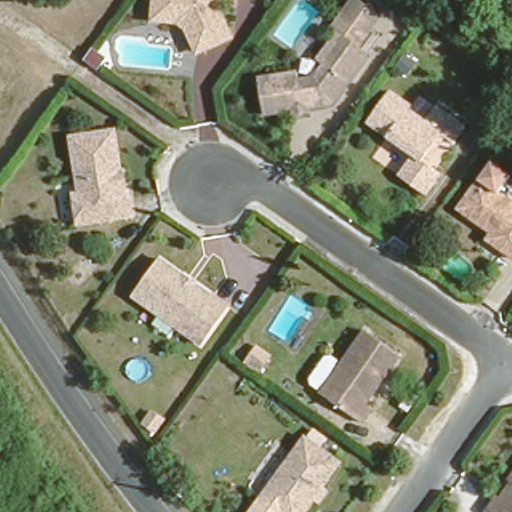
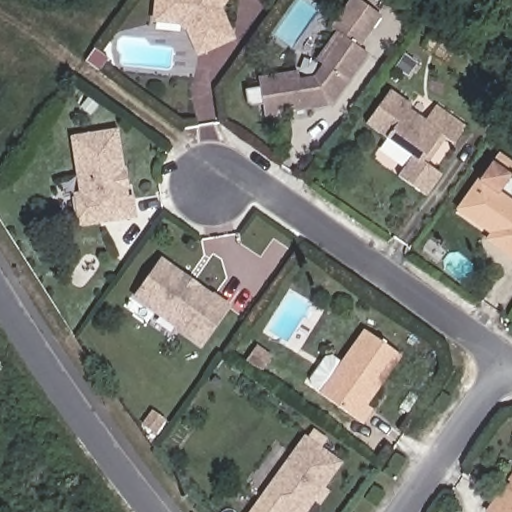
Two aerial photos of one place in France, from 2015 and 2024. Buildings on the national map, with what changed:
unchanged [(192,24),(186,20),(182,25),(160,25),(160,0),(228,0),(221,12),(232,38),(198,52),(188,30),(192,24)]
unchanged [(293,124),(292,120),(267,124),(261,89),(297,83),(299,91),(317,88),(325,77),(318,73),(338,46),(331,41),(355,9),(381,27),(358,59),(367,66),(333,114),(307,117),(308,122),(293,124)]
unchanged [(441,107),(468,125),(455,143),(445,136),(428,160),(445,170),(430,192),(401,172),(415,151),(367,117),(388,87),(410,101),(406,106),(431,122),(441,107)]
unchanged [(113,171),(114,178),(122,182),(123,196),(130,196),(132,212),(76,222),(71,191),(77,190),(69,138),(114,131),(119,170),(113,171)]
unchanged [(510,171),(497,188),(512,198),(512,254),(482,233),(486,228),(457,207),(491,157),(510,171)]
unchanged [(196,282),(208,290),(210,287),(226,298),(197,338),(172,321),(174,317),(161,308),(159,312),(132,293),(160,256),(182,272),(182,276),(194,283),(196,282)]
unchanged [(366,401),(357,415),(317,387),(360,326),(392,348),(359,396),(366,401)]
unchanged [(245,381),(255,366),(267,375),(257,389),(245,381)]
unchanged [(316,498),(311,495),(299,512),(282,512),(260,496),(302,435),(337,459),(318,485),(323,488),(316,498)]
unchanged [(483,509),(493,495),(498,498),(512,477),(512,512),(488,512),(483,509)]

